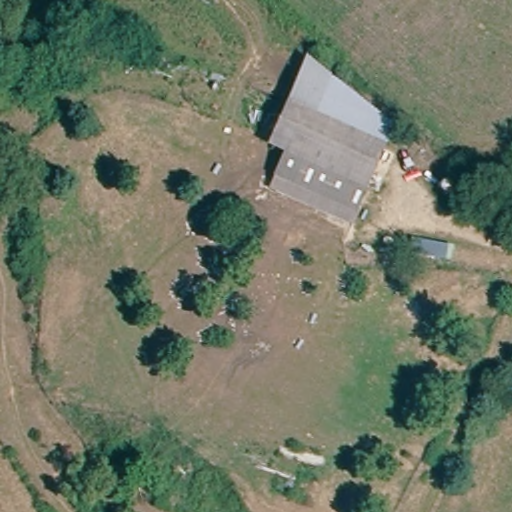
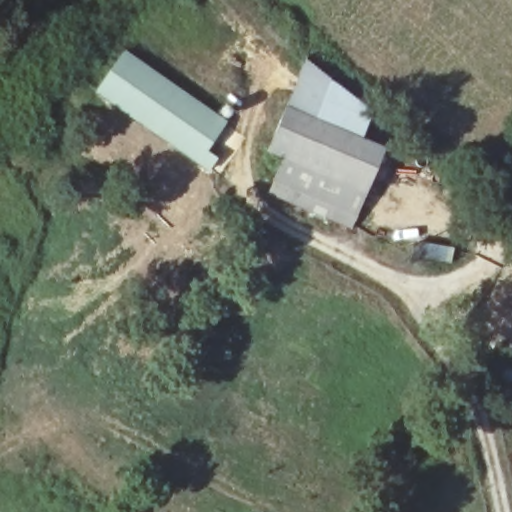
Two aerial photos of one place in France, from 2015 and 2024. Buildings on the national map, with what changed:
new [(227,122),(207,151),(217,158),(209,171),(92,92),(124,49),(227,122)]
unchanged [(396,126),(354,230),(266,195),(283,162),(265,153),(301,55),(396,126)]

